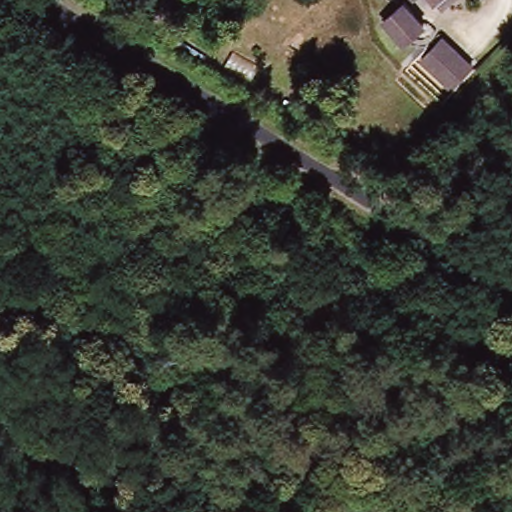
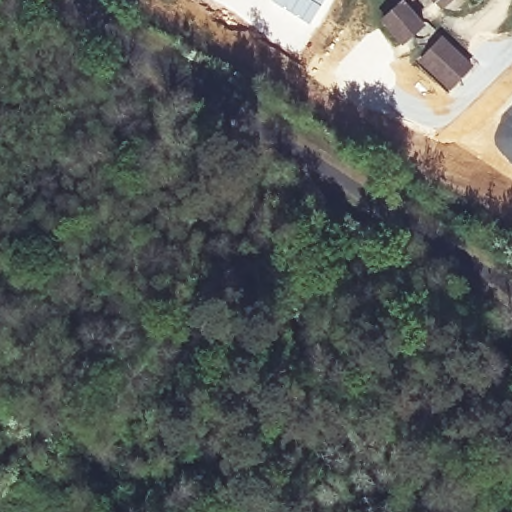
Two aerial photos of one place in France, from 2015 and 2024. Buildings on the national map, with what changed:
new [(308,24),(270,0),(324,0),(320,6),(308,24)]
unchanged [(441,0),(455,0),(447,7),(441,0)]
unchanged [(430,24),(404,47),(394,36),(404,27),(395,18),(412,4),(430,24)]
unchanged [(455,89),(425,64),(445,42),(474,68),(455,89)]

